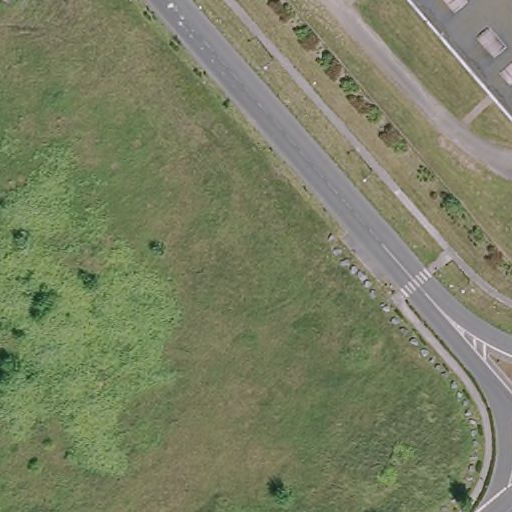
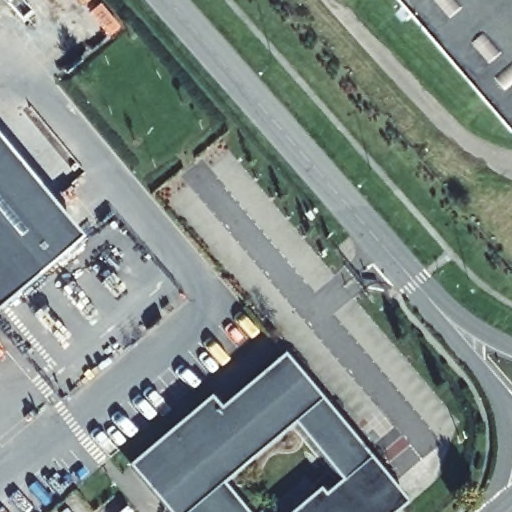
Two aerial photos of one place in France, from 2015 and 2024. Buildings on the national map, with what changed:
unchanged [(408,0),(512,0),(512,121),(408,0)]
new [(0,312),(0,134),(85,242),(0,312)]
new [(227,408),(292,353),(399,485),(387,496),(399,512),(176,512),(171,507),(178,502),(147,464),(222,401),(227,408)]

